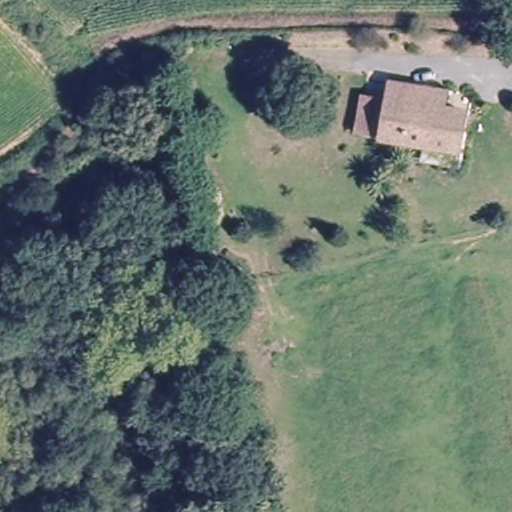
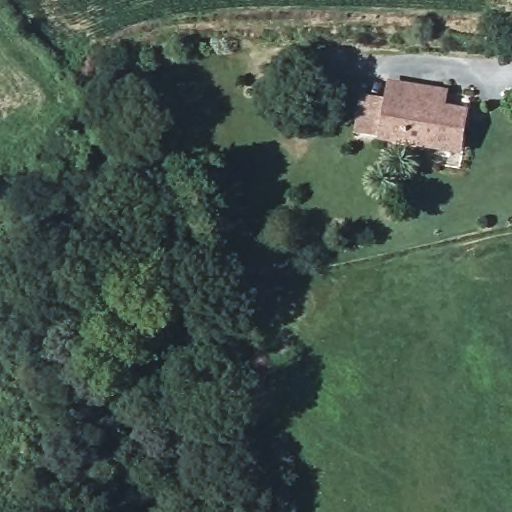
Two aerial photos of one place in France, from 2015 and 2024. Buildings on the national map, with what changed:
unchanged [(423,92),(437,93),(436,119),(457,120),(454,153),(452,153),(382,148),(389,89),(423,92)]

